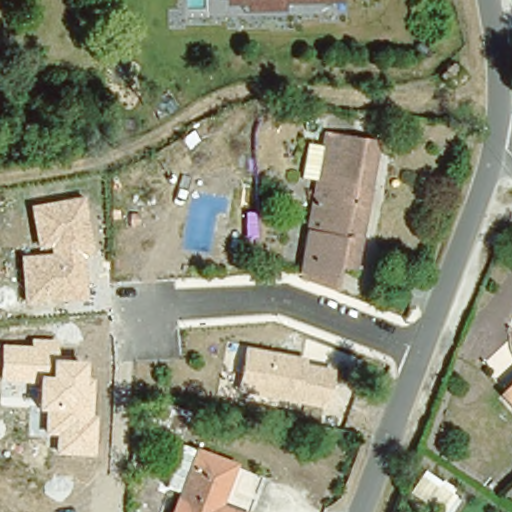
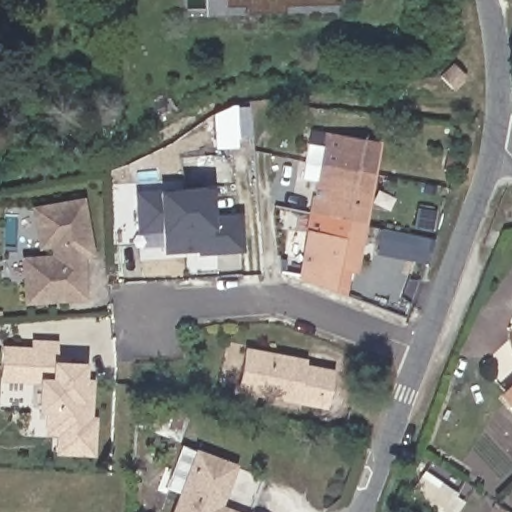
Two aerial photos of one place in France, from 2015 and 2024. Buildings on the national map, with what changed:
unchanged [(340,7),(282,7),(282,15),(243,15),(243,7),(223,7),(223,0),(340,0),(340,7)]
unchanged [(448,77),(458,67),(467,76),(456,85),(448,77)]
unchanged [(300,275),(317,183),(301,180),(308,146),(323,149),(327,133),(378,142),(354,271),(341,268),(337,290),(300,275)]
new [(244,251),(197,255),(196,250),(163,252),(163,231),(159,231),(136,232),(133,192),(155,190),(208,186),(210,214),(241,211),(244,251)]
unchanged [(92,257),(76,257),(83,298),(21,306),(18,256),(50,254),(50,247),(38,249),(31,204),(83,196),(92,257)]
unchanged [(91,380),(90,416),(96,416),(93,457),(54,454),(55,437),(42,436),(44,412),(35,412),(36,384),(0,382),(0,346),(29,347),(30,339),(55,341),(53,358),(86,360),(86,380),(91,380)]
unchanged [(325,409),(236,392),(246,349),(306,360),(306,365),(333,372),(325,409)]
unchanged [(502,392),(512,382),(512,402),(502,392)]
unchanged [(148,392),(188,407),(177,436),(136,420),(148,392)]
unchanged [(166,486),(183,443),(234,462),(218,503),(240,512),(171,512),(179,491),(166,486)]
unchanged [(458,512),(438,512),(409,493),(422,472),(465,502),(458,512)]

